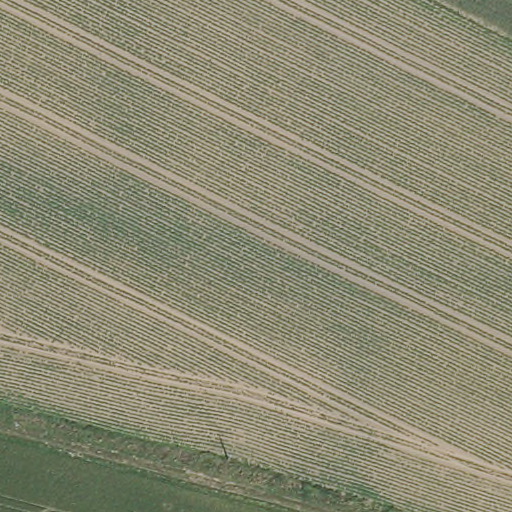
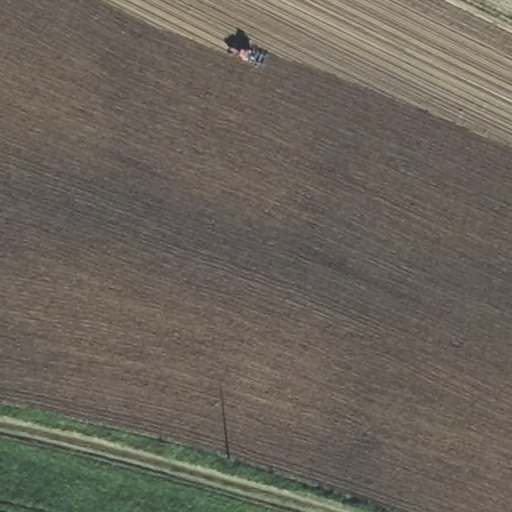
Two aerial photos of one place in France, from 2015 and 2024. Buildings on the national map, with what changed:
[]

